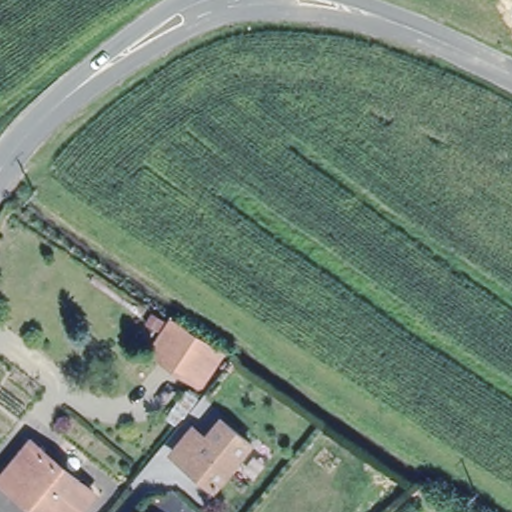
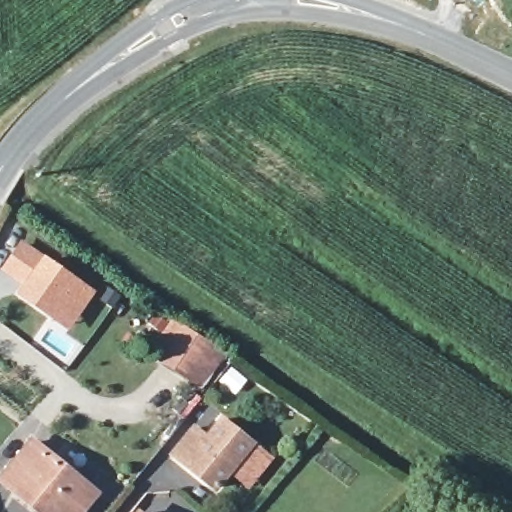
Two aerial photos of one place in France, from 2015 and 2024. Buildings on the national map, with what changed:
new [(51,307),(22,286),(28,277),(7,262),(23,240),(90,287),(77,305),(67,318),(51,307)]
unchanged [(159,358),(182,325),(223,351),(201,385),(159,358)]
unchanged [(213,486),(214,485),(187,465),(172,454),(193,428),(205,438),(221,420),(251,443),(215,488),(213,486)]
unchanged [(32,442),(94,493),(79,512),(42,512),(2,480),(32,442)]

